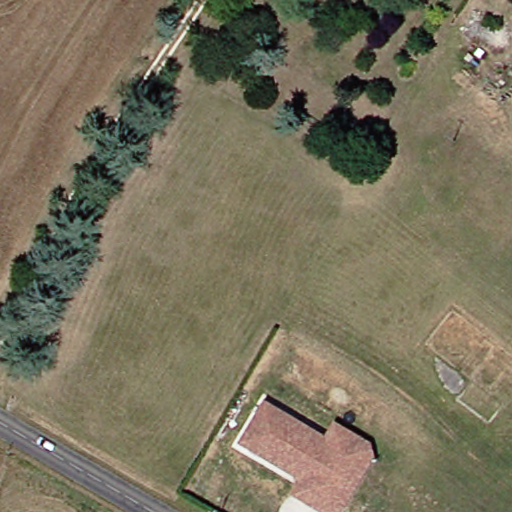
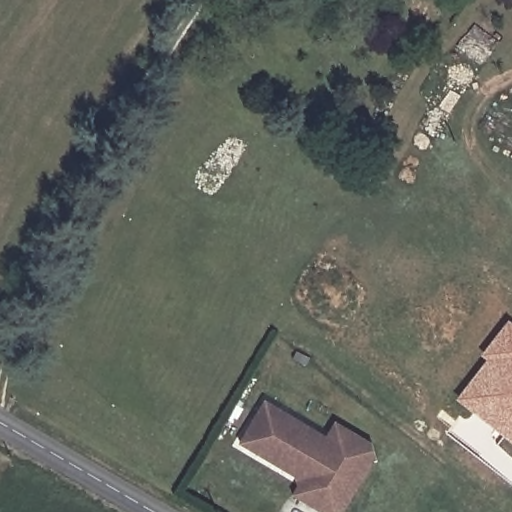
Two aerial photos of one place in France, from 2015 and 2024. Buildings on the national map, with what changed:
new [(457,398),(488,360),(481,355),(509,320),(512,322),(512,441),(457,398)]
unchanged [(241,441),(268,399),(328,437),(358,456),(327,505),(305,491),(309,484),(302,480),(241,441)]
unchanged [(373,445),(377,458),(343,512),(321,512),(293,495),(302,480),(309,484),(305,491),(327,505),(358,456),(328,437),(337,422),(373,445)]

